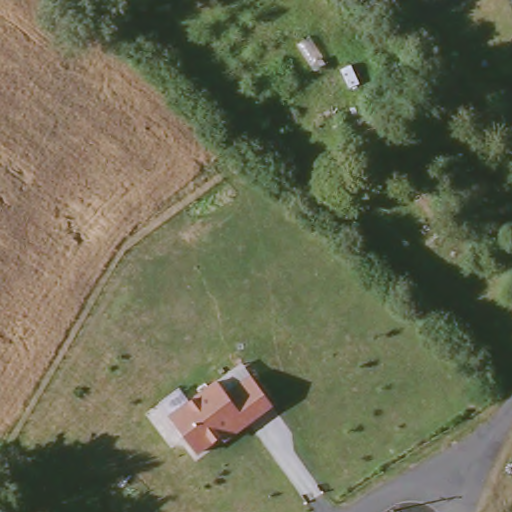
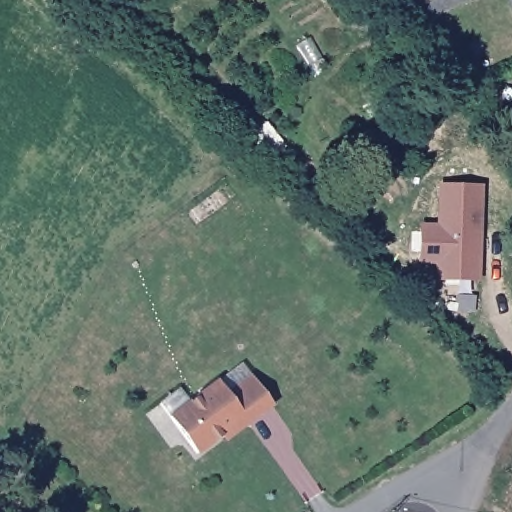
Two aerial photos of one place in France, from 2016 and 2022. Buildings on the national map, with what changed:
new [(479,279),(436,279),(435,265),(418,264),(419,225),(436,225),(438,184),(482,183),(479,279)]
unchanged [(219,433),(195,451),(168,415),(216,379),(226,391),(249,374),(271,402),(246,420),(223,438),(219,433)]

